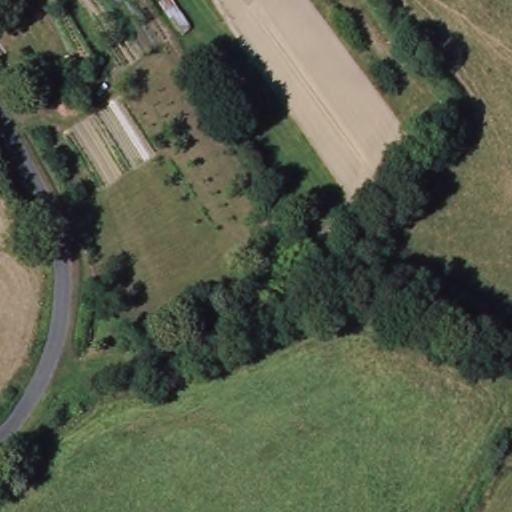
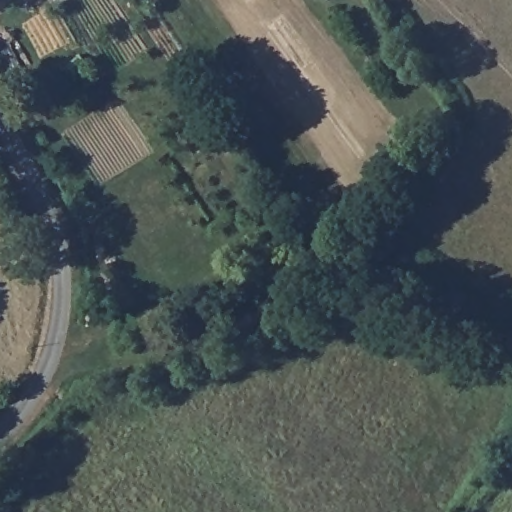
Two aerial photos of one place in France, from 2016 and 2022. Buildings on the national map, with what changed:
unchanged [(85,71),(75,80),(64,67),(75,59),(85,71)]

